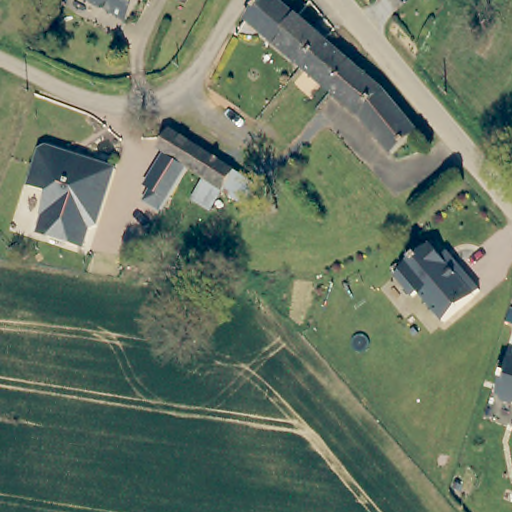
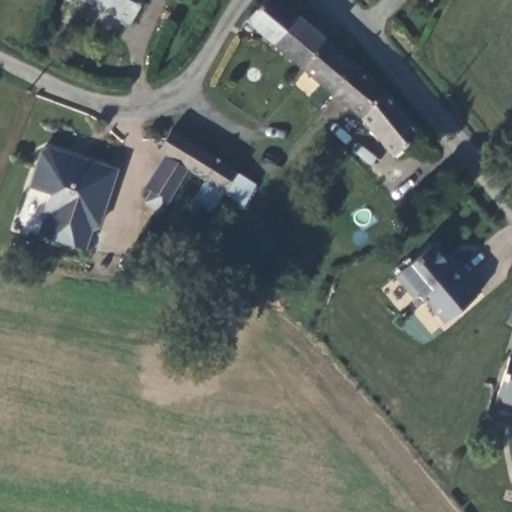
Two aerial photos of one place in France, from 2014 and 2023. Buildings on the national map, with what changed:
unchanged [(130,24),(79,0),(142,0),(130,24)]
unchanged [(275,44),(247,21),(267,0),(278,0),(298,17),(275,44)]
unchanged [(275,44),(298,17),(327,42),(303,69),(275,44)]
unchanged [(303,69),(327,42),(353,64),(330,91),(303,69)]
unchanged [(353,64),(391,97),(420,130),(391,155),(362,120),(330,91),(353,64)]
unchanged [(199,203),(211,184),(197,175),(165,154),(177,136),(223,166),(240,177),(228,195),(216,214),(199,203)]
unchanged [(39,214),(36,213),(42,192),(23,186),(34,150),(41,146),(61,152),(65,162),(71,164),(74,156),(110,166),(92,223),(85,227),(79,247),(44,236),(34,233),(39,214)]
unchanged [(446,320),(429,300),(423,305),(397,275),(402,270),(402,269),(432,243),(458,273),(464,268),(481,288),(475,293),(476,294),(446,320)]
unchanged [(504,398),(501,393),(499,392),(512,354),(512,401),(504,398)]

